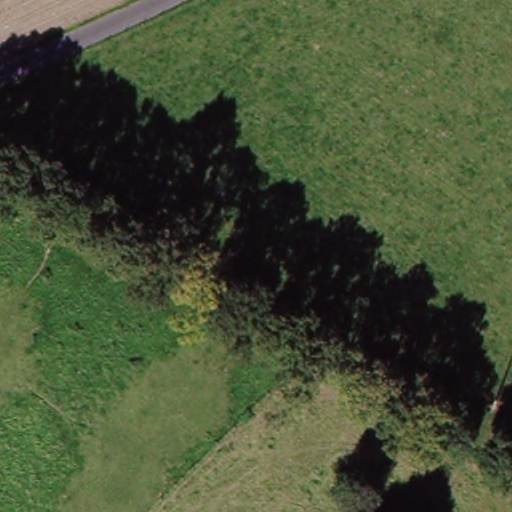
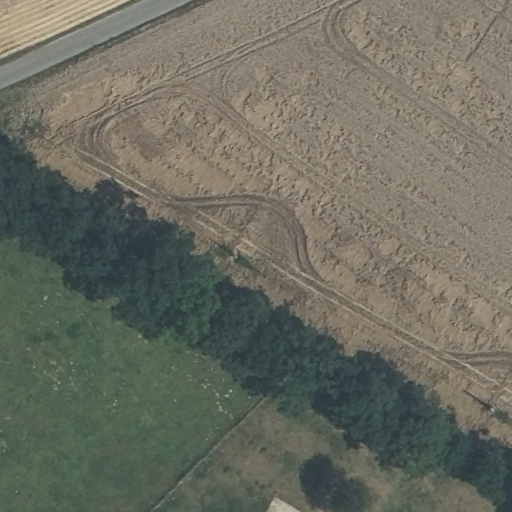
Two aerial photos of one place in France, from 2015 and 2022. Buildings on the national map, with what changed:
[]

